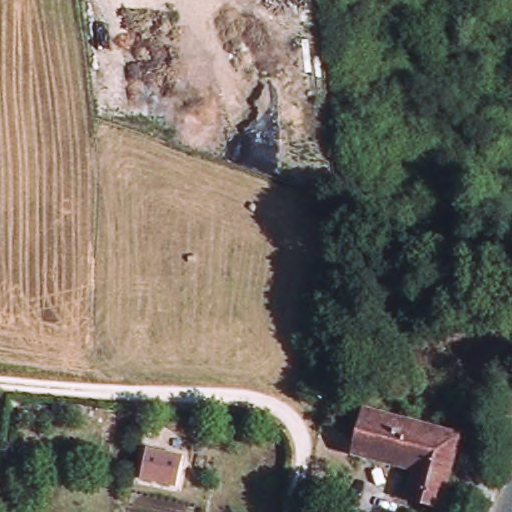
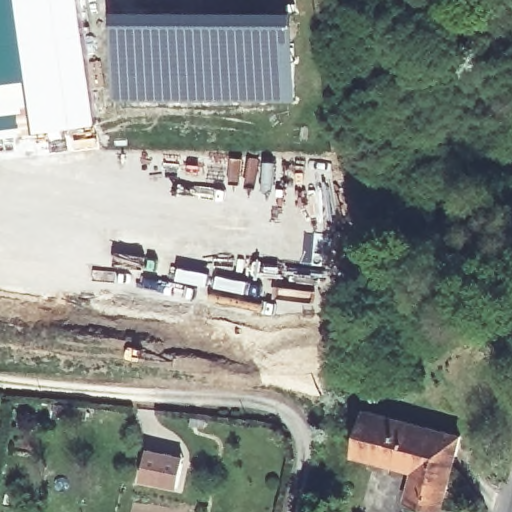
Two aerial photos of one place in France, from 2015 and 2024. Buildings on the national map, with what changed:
new [(27,77),(34,129),(32,130),(32,133),(0,135),(0,0),(15,0),(27,77)]
new [(98,123),(34,133),(34,129),(27,77),(15,0),(81,0),(98,123)]
new [(114,10),(295,11),(296,100),(115,99),(114,10)]
unchanged [(434,512),(407,505),(415,476),(355,460),(367,416),(461,441),(442,512),(434,512)]
unchanged [(184,457),(177,489),(141,480),(147,450),(184,457)]

